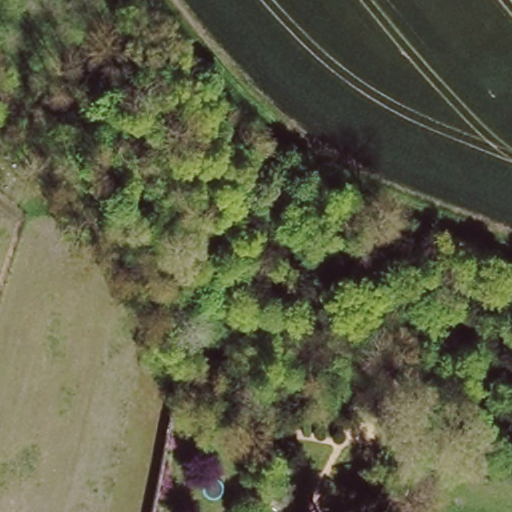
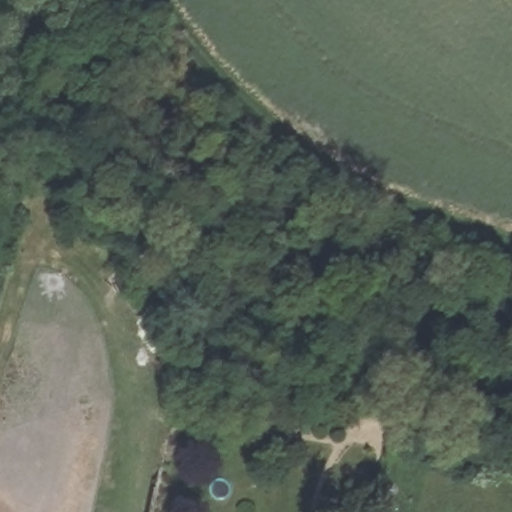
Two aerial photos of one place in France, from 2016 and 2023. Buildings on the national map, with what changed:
unchanged [(203,408),(197,434),(170,429),(176,402),(203,408)]

